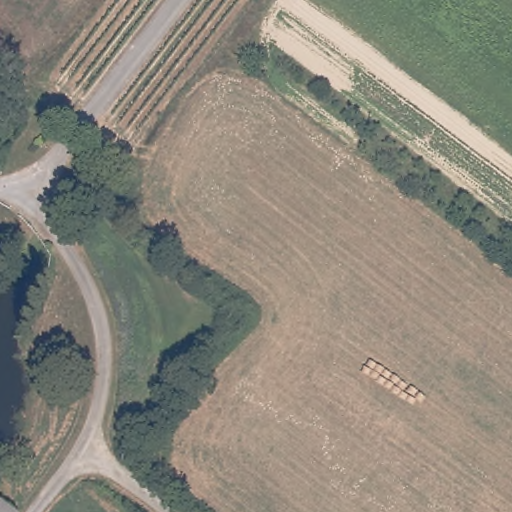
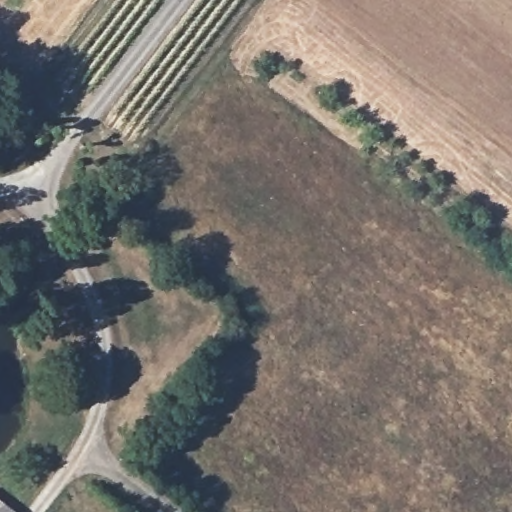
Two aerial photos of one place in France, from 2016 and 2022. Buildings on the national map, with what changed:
unchanged [(10,512),(0,512),(0,505),(10,512)]

